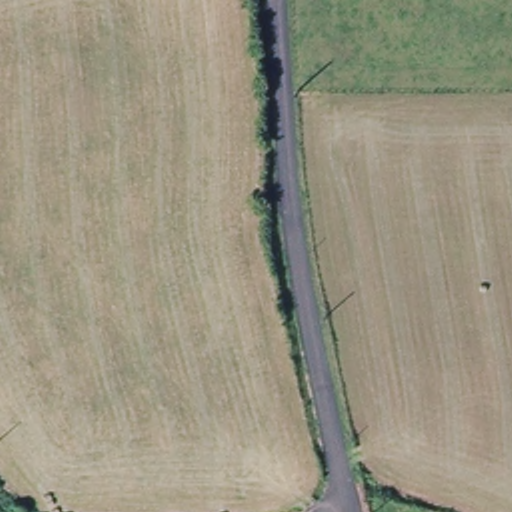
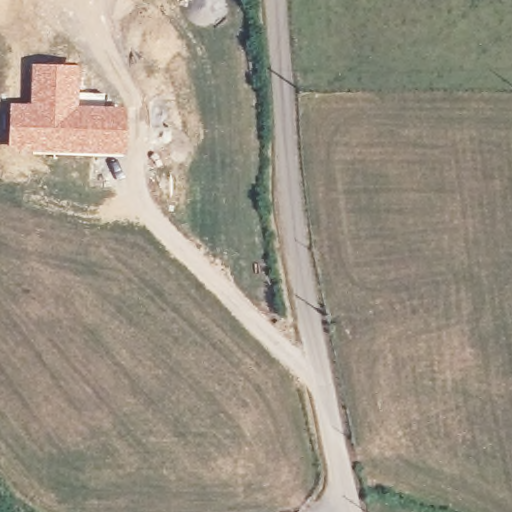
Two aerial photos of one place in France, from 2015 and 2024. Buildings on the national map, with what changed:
new [(9,103),(29,103),(31,63),(80,66),(79,105),(127,106),(126,156),(53,153),(7,149),(9,103)]

